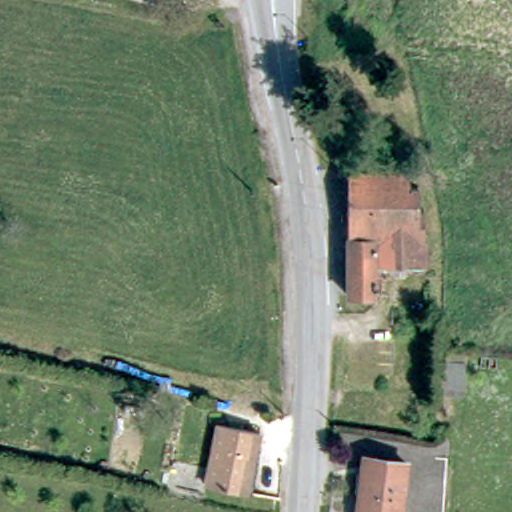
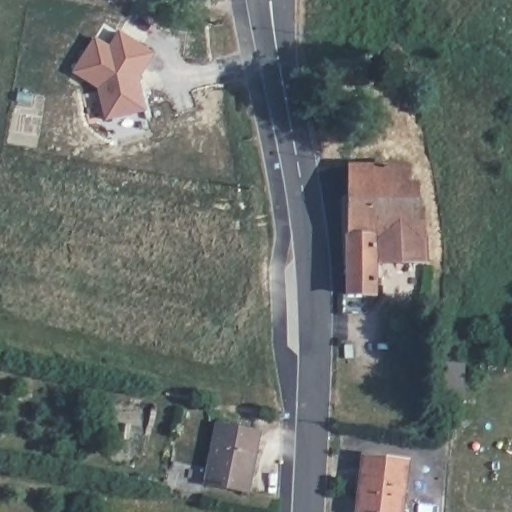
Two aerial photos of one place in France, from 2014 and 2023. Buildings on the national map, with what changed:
new [(146,112),(104,121),(96,89),(71,72),(94,36),(108,44),(118,30),(154,53),(139,80),(146,112)]
unchanged [(411,187),(423,187),(423,209),(426,209),(426,260),(376,260),(376,294),(348,294),(349,167),(412,167),(411,187)]
unchanged [(423,412),(421,427),(396,425),(397,420),(379,417),(379,410),(389,410),(423,412)]
unchanged [(249,471),(255,472),(250,497),(208,488),(220,428),(256,436),(249,471)]
unchanged [(401,512),(360,512),(368,457),(408,462),(401,512)]

